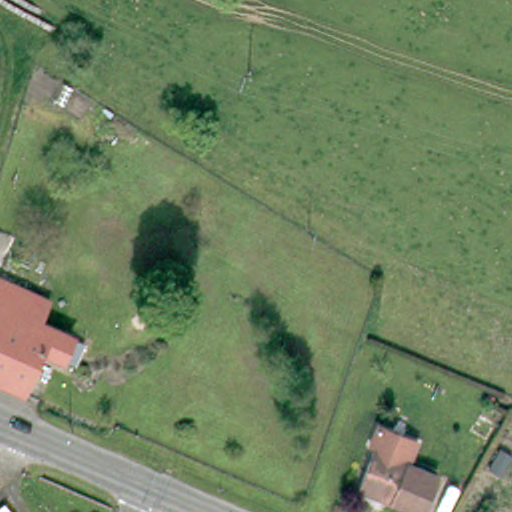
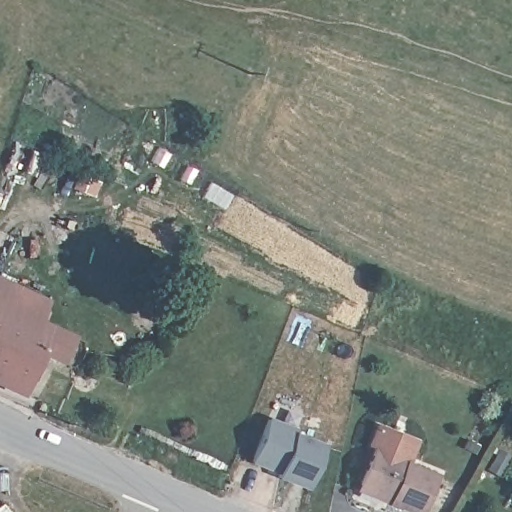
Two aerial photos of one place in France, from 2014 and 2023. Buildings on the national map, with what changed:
unchanged [(82,342),(71,367),(50,357),(30,398),(0,385),(0,301),(8,282),(47,300),(37,320),(82,342)]
new [(252,458),(268,416),(297,427),(295,432),(325,443),(309,485),(278,474),(280,469),(269,465),(252,458)]
unchanged [(382,447),(377,444),(385,426),(423,444),(413,465),(441,479),(425,512),(414,512),(385,498),(363,488),(365,484),(382,447)]
unchanged [(0,512),(0,505),(7,499),(16,512),(0,512)]

